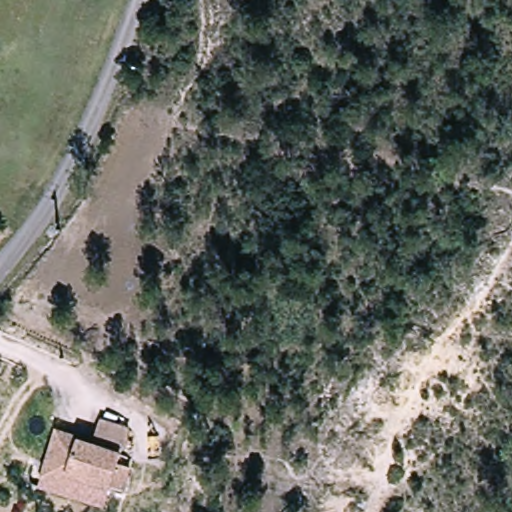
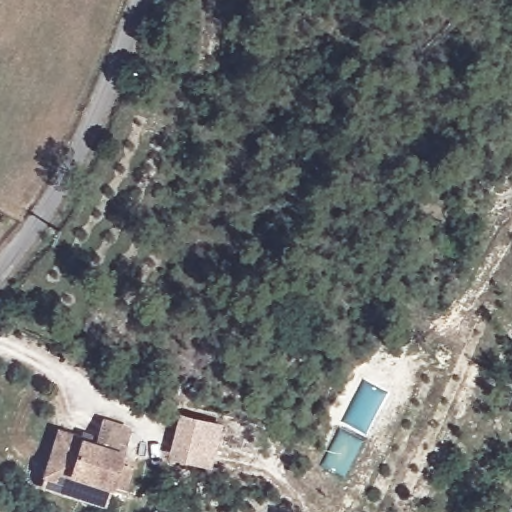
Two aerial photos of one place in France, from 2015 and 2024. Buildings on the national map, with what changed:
new [(185,416),(218,424),(207,463),(175,454),(185,416)]
unchanged [(136,431),(129,455),(135,458),(132,468),(138,471),(132,493),(73,477),(70,485),(47,478),(61,432),(88,439),(90,433),(108,438),(113,423),(136,431)]

